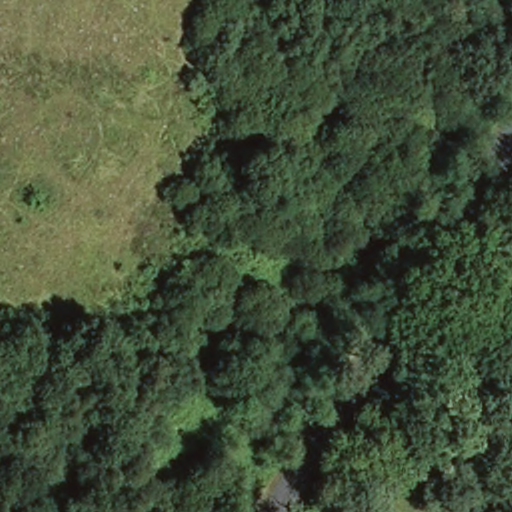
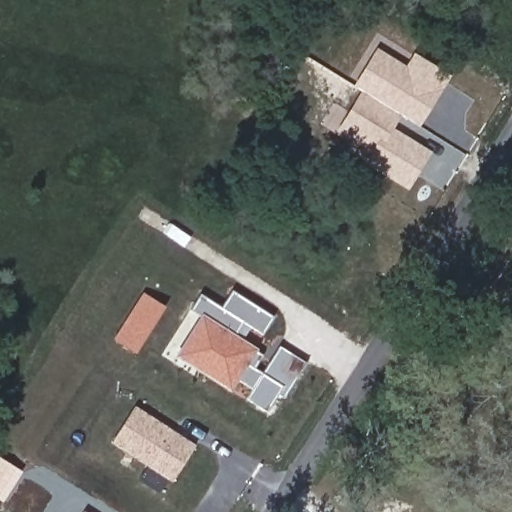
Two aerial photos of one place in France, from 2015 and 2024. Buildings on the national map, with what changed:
new [(420,126),(402,115),(393,128),(432,151),(408,188),(364,161),(370,151),(337,131),(362,91),(353,86),(377,48),(406,65),(414,53),(451,76),(420,126)]
new [(264,334),(251,327),(242,339),(256,348),(255,351),(262,354),(253,368),(261,373),(279,347),(306,362),(285,398),(279,394),(267,412),(247,399),(254,389),(239,379),(232,392),(176,356),(200,317),(189,310),(200,294),(220,308),(233,290),(273,318),(264,334)]
new [(135,353),(114,339),(144,293),(165,307),(135,353)]
new [(193,447),(171,482),(116,447),(120,441),(115,438),(134,409),(193,447)]

